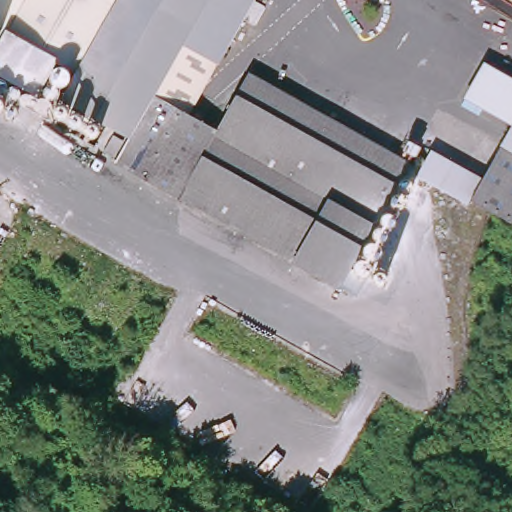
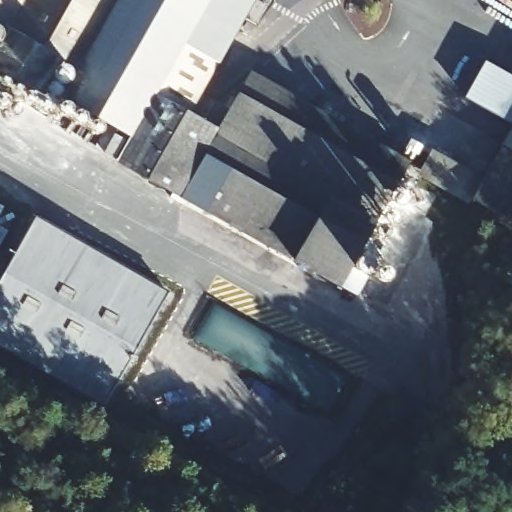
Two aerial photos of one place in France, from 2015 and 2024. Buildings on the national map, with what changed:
unchanged [(401,220),(367,279),(351,270),(340,289),(293,260),(180,196),(115,159),(123,139),(116,135),(106,156),(71,128),(0,90),(0,32),(1,29),(0,28),(0,0),(255,0),(219,65),(182,46),(156,94),(219,129),(250,72),(411,163),(435,177),(420,192),(411,201),(401,220)]
unchanged [(0,32),(0,28),(1,29),(0,32)]
new [(191,112),(156,94),(182,46),(219,65),(191,112)]
unchanged [(463,101),(484,62),(512,76),(512,123),(463,101)]
unchanged [(501,144),(512,124),(512,222),(472,202),(501,144)]
new [(102,405),(0,346),(0,281),(36,217),(166,292),(102,405)]

